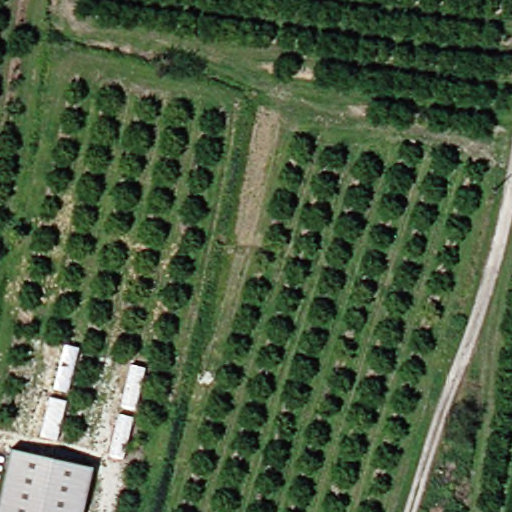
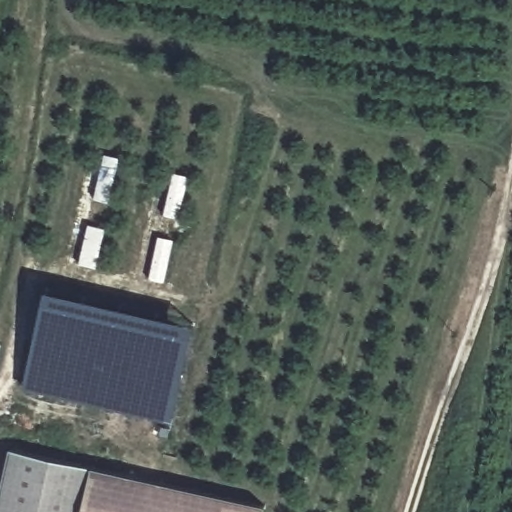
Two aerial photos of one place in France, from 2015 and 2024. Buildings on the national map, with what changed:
new [(173,420),(24,387),(44,287),(196,323),(173,420)]
unchanged [(91,468),(82,512),(0,512),(0,491),(10,449),(91,468)]
new [(262,505),(260,512),(82,512),(91,468),(262,505)]

